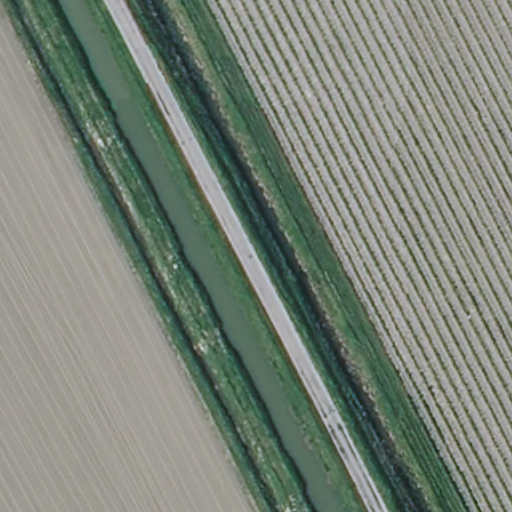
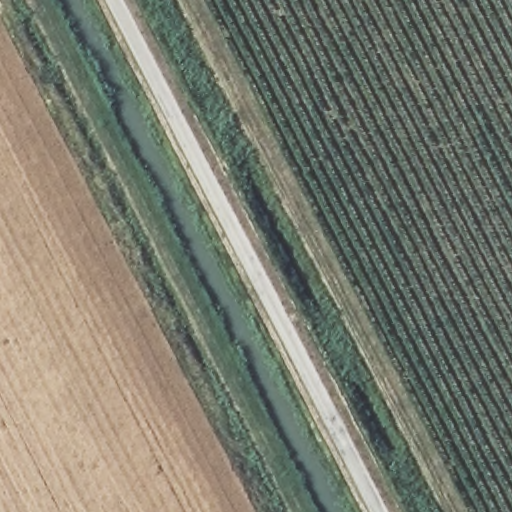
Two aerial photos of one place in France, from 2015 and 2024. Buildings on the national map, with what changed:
[]

